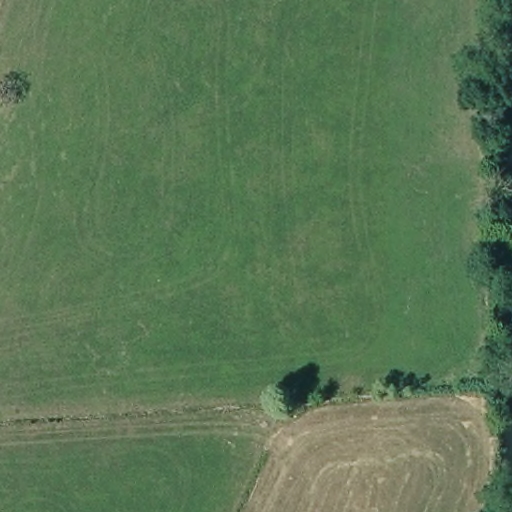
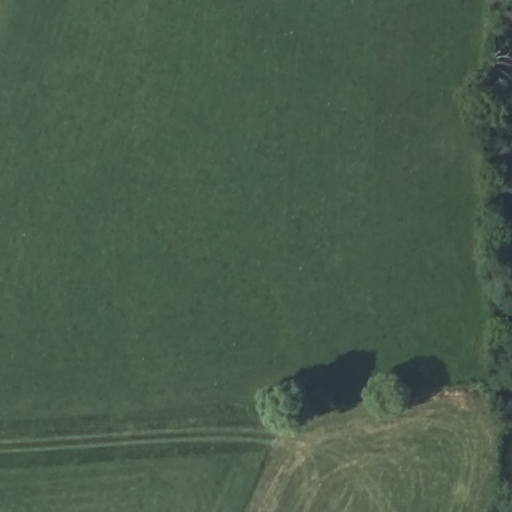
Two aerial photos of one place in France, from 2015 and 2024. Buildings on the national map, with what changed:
[]

